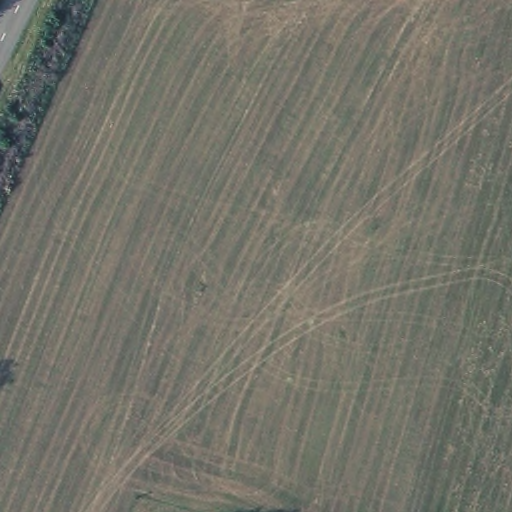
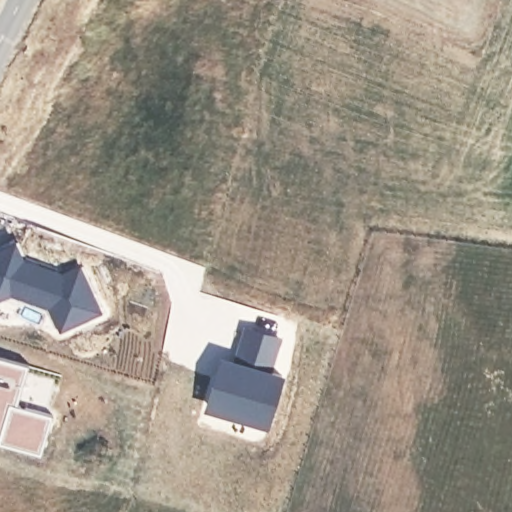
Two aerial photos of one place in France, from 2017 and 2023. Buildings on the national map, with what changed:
new [(13,242),(22,259),(61,273),(78,266),(98,311),(60,328),(49,305),(9,290),(0,294),(0,248),(13,242)]
new [(220,357),(235,361),(245,327),(278,337),(268,370),(282,375),(267,422),(206,404),(220,357)]
new [(28,363),(17,404),(52,414),(40,455),(0,443),(0,355),(28,363)]

